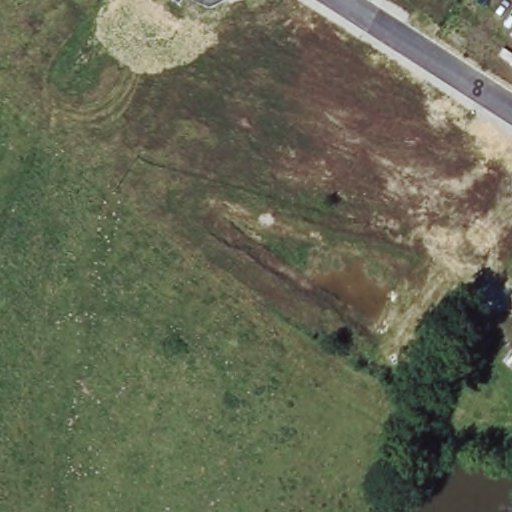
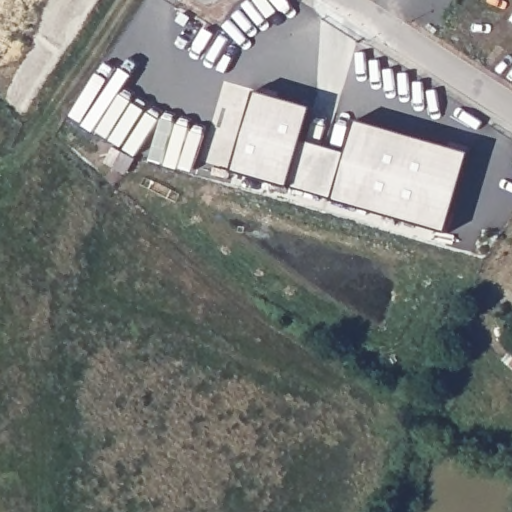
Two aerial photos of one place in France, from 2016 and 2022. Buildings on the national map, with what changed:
new [(315,105),(305,138),(350,151),(358,119),(472,151),(450,233),(235,171),(258,90),(315,105)]

